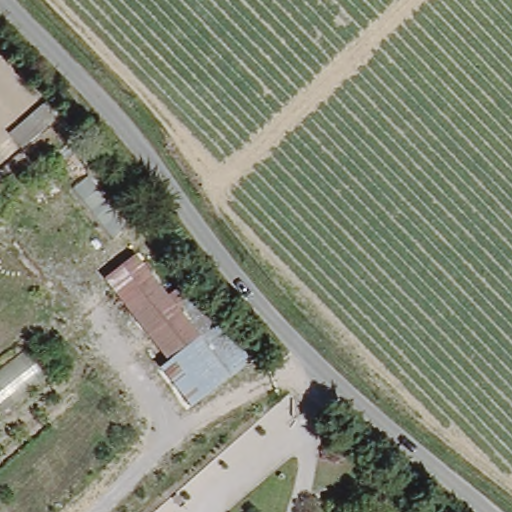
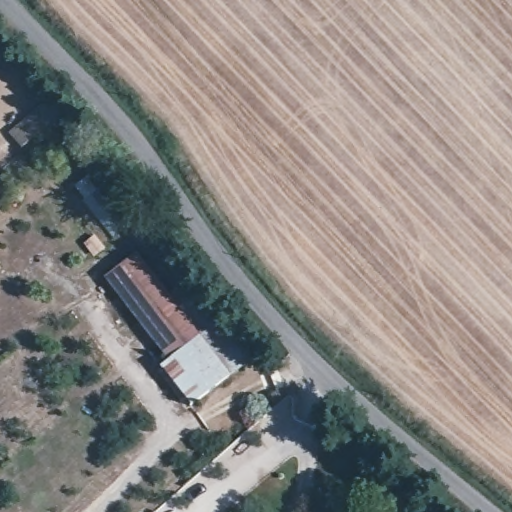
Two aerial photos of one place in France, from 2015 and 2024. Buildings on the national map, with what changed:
unchanged [(63,115),(19,152),(5,136),(49,100),(63,115)]
unchanged [(159,361),(108,292),(101,284),(131,259),(138,267),(159,292),(175,278),(249,354),(185,408),(151,368),(159,361)]

